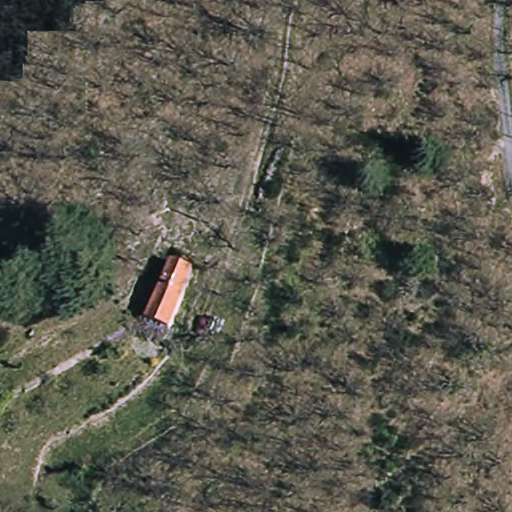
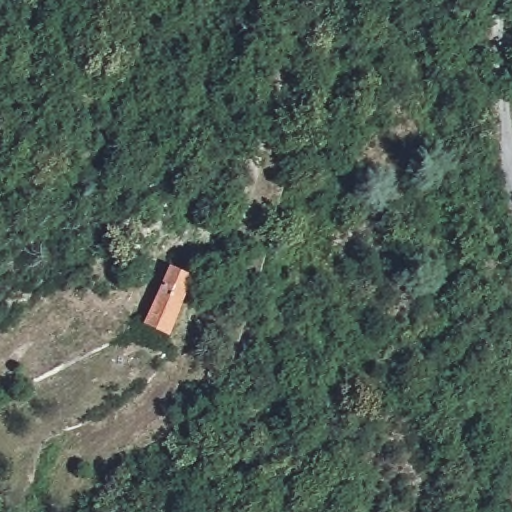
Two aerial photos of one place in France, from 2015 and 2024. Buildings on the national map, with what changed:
unchanged [(172,267),(198,278),(171,337),(145,325),(172,267)]

